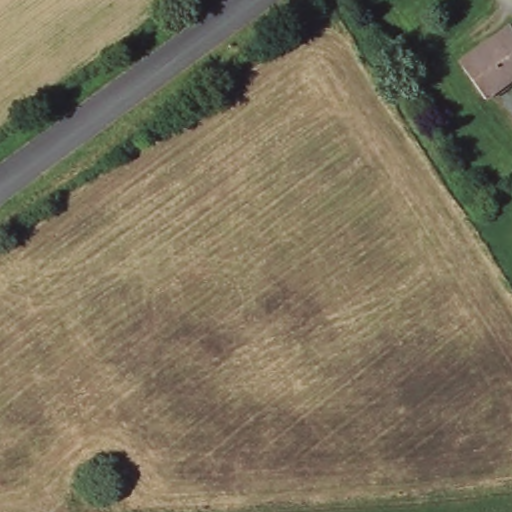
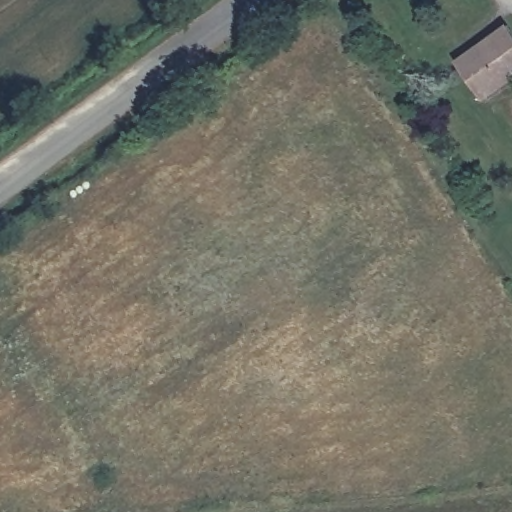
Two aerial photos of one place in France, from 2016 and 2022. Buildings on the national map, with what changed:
unchanged [(477,49),(492,37),(511,25),(512,27),(512,78),(502,85),(483,97),(458,62),(477,49)]

